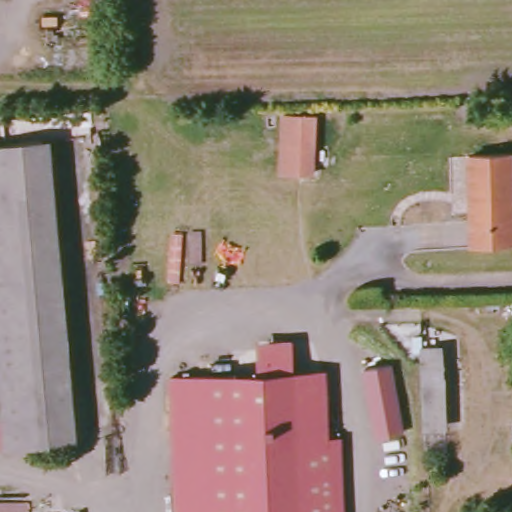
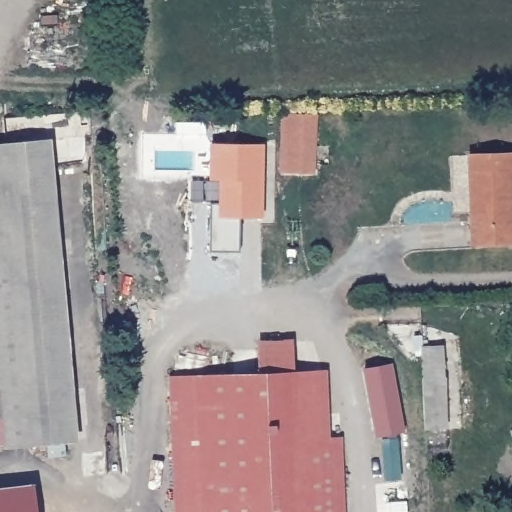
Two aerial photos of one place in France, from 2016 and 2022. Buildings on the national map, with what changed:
unchanged [(280,113),(317,114),(315,178),(276,177),(280,113)]
unchanged [(75,446),(11,451),(7,391),(0,320),(0,148),(48,145),(75,446)]
new [(262,217),(242,218),(240,253),(212,252),(212,204),(219,203),(220,179),(210,179),(211,145),(265,145),(262,217)]
unchanged [(469,251),(469,233),(467,160),(512,159),(512,250),(469,251)]
unchanged [(0,320),(7,391),(0,392),(0,320)]
unchanged [(257,374),(257,342),(292,342),(294,374),(327,371),(330,447),(345,447),(346,512),(170,512),(166,379),(257,374)]
unchanged [(445,346),(450,428),(426,429),(421,346),(445,346)]
unchanged [(394,362),(408,431),(377,438),(362,368),(394,362)]
new [(10,442),(0,443),(0,392),(7,391),(10,442)]
new [(37,512),(0,512),(0,485),(34,481),(37,512)]

